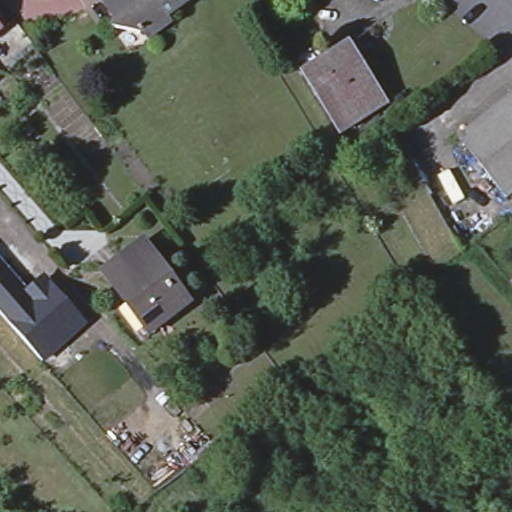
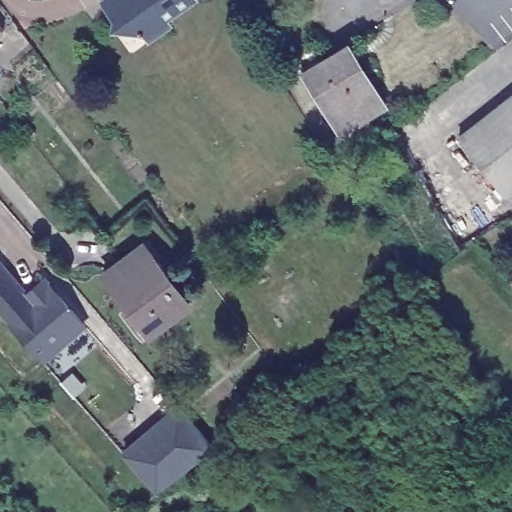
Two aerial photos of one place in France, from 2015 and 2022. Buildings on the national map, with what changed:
unchanged [(188,2),(164,20),(167,25),(145,42),(140,35),(138,37),(108,28),(110,17),(97,1),(98,0),(187,0),(188,2)]
unchanged [(0,28),(1,29),(0,30),(0,28)]
unchanged [(346,45),(383,105),(340,132),(302,72),(346,45)]
unchanged [(503,195),(457,136),(512,91),(512,188),(503,195)]
unchanged [(501,237),(484,251),(477,242),(494,227),(501,237)]
unchanged [(141,242),(189,305),(148,336),(100,272),(141,242)]
unchanged [(0,259),(27,292),(46,276),(89,326),(43,362),(0,312),(0,259)]
unchanged [(512,281),(512,284),(511,282),(512,281)]
new [(177,405),(215,448),(157,493),(121,450),(177,405)]

